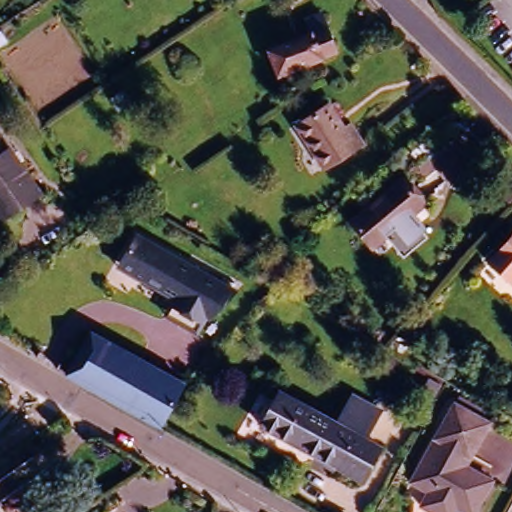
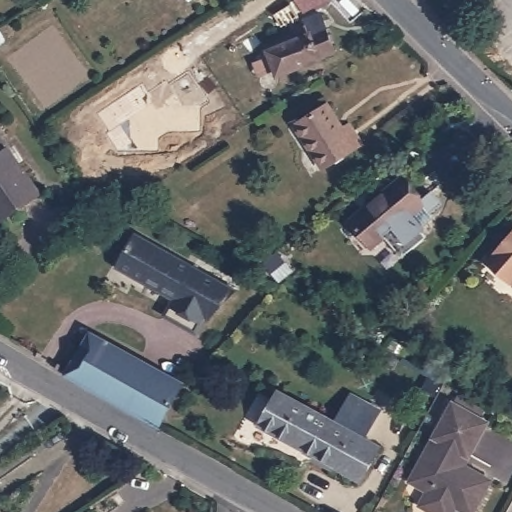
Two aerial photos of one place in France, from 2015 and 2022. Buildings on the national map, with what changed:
unchanged [(320,14),(336,51),(277,75),(266,50),(310,32),(305,20),(320,14)]
unchanged [(322,170),(294,130),(327,109),(342,130),(348,126),(353,132),(361,144),(322,170)]
unchanged [(36,193),(0,217),(0,141),(36,193)]
unchanged [(400,179),(420,202),(371,245),(350,221),(400,179)]
unchanged [(509,281),(487,261),(512,233),(512,278),(509,281)]
unchanged [(229,291),(212,324),(206,320),(198,333),(166,317),(175,301),(119,271),(136,238),(229,291)]
unchanged [(88,334),(180,384),(158,425),(156,426),(65,376),(88,334)]
unchanged [(378,450),(359,484),(258,430),(277,395),(334,426),(362,442),(378,450)]
unchanged [(349,398),(378,413),(362,442),(334,426),(349,398)]
unchanged [(432,490),(414,480),(456,403),(490,422),(472,455),(468,452),(463,461),(495,478),(476,512),(438,512),(424,505),(432,490)]

